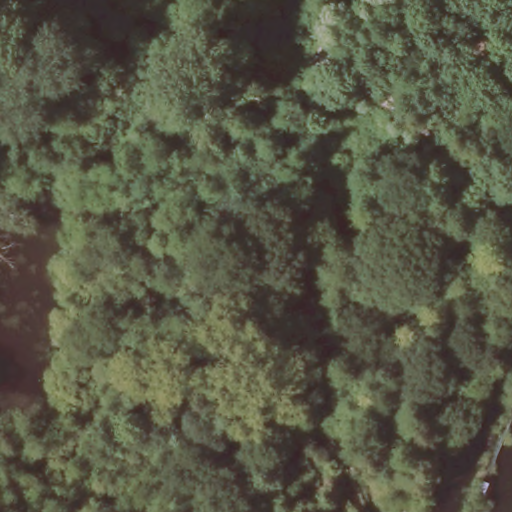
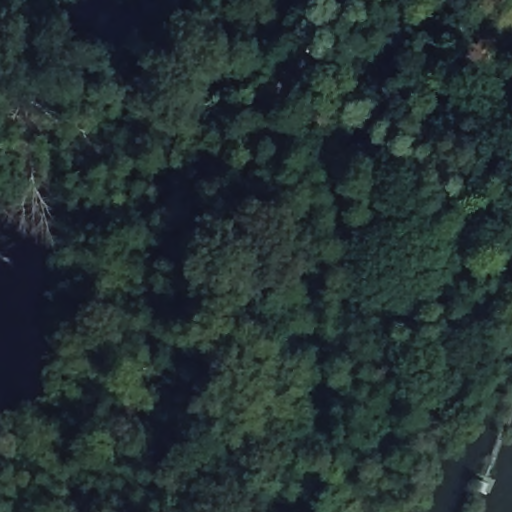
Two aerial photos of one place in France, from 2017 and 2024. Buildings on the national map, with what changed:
unchanged [(495,50),(489,49),(483,70),(464,65),(471,40),(479,42),(484,28),(500,36),(495,50)]
unchanged [(405,441),(379,435),(386,410),(413,421),(405,441)]

